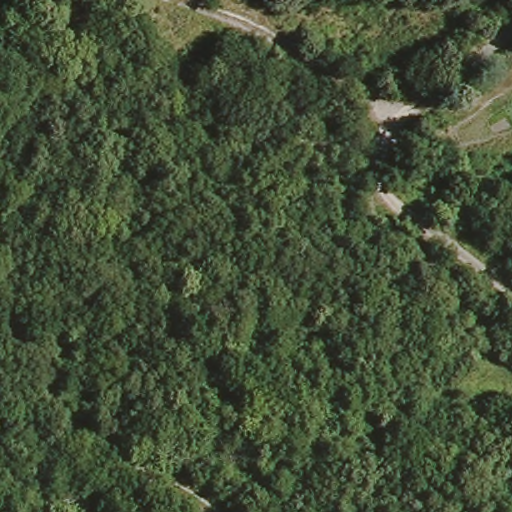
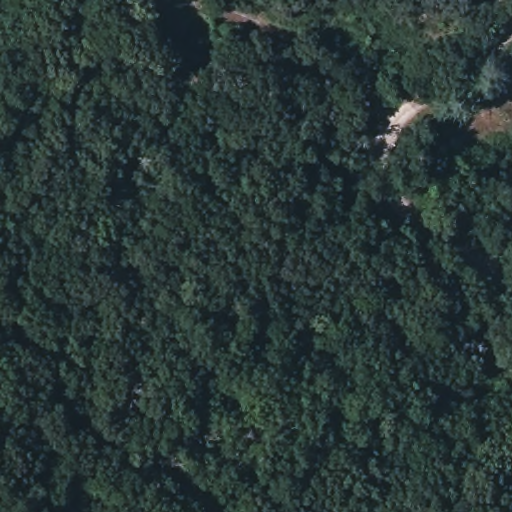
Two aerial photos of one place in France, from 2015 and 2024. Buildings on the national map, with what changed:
unchanged [(471,80),(482,95),(457,113),(446,97),(471,80)]

